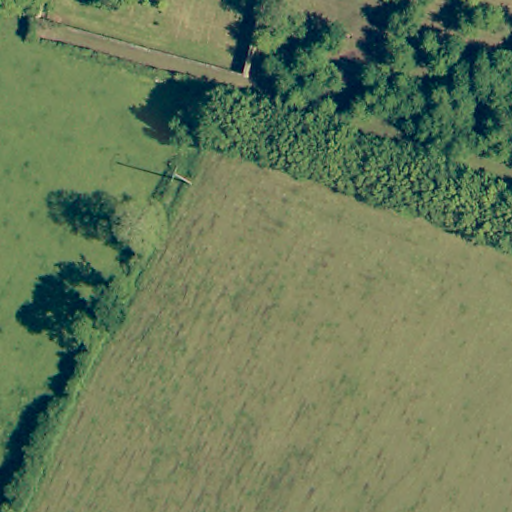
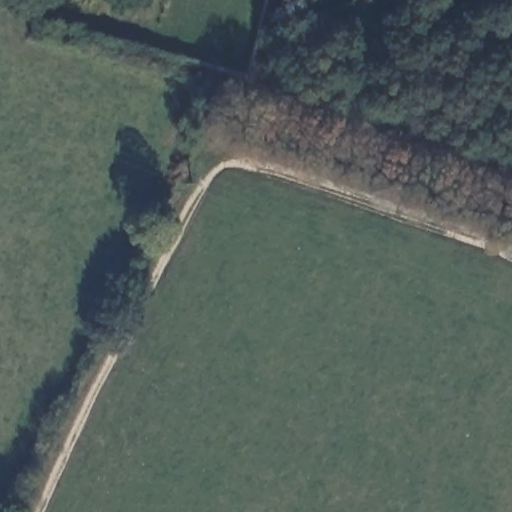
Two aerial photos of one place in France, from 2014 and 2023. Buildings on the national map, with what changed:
[]

